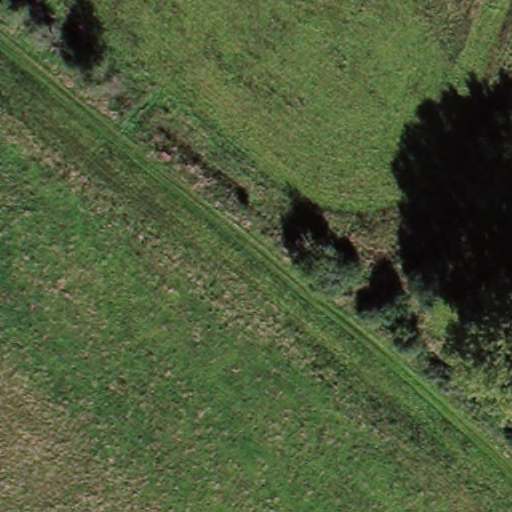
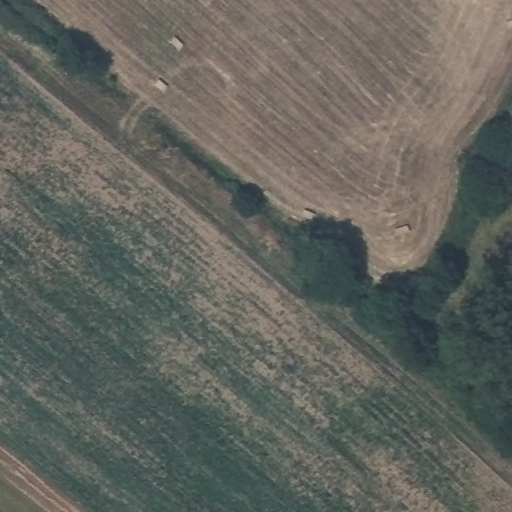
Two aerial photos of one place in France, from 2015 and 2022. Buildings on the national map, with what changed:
[]

